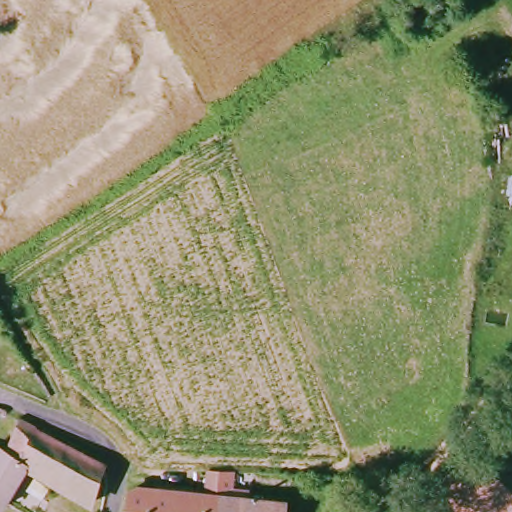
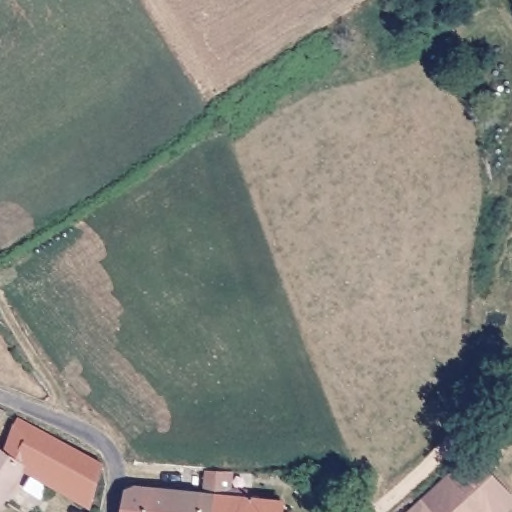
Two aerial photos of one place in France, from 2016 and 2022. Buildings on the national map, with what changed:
unchanged [(18,467),(0,502),(0,455),(14,421),(100,464),(86,506),(18,467)]
new [(512,492),(512,508),(507,512),(408,512),(474,451),(512,492)]
unchanged [(143,490),(215,498),(214,512),(124,512),(126,495),(143,490)]
unchanged [(283,505),(282,512),(214,512),(215,498),(283,505)]

